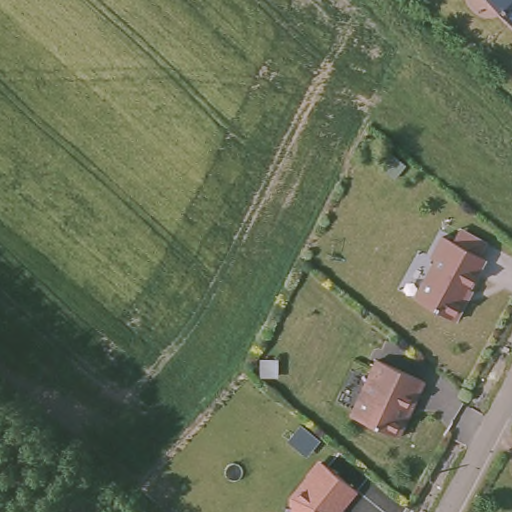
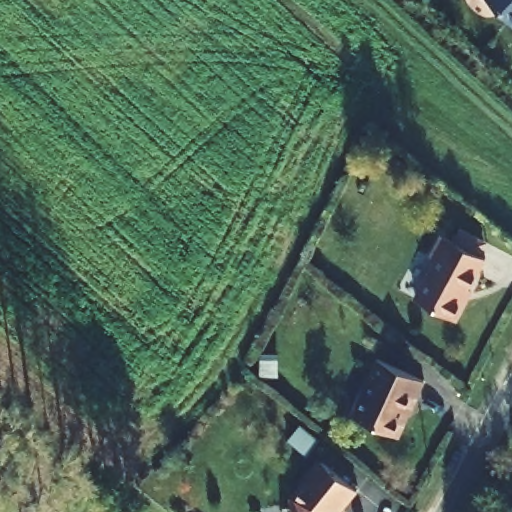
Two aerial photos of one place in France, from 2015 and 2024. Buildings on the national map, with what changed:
unchanged [(512,24),(487,0),(512,0),(512,24)]
unchanged [(464,302),(469,303),(458,323),(418,300),(439,262),(434,260),(447,237),(457,242),(464,228),(490,242),(482,257),(488,260),(464,302)]
unchanged [(353,413),(380,359),(425,384),(417,401),(411,398),(400,420),(406,423),(398,437),(353,413)]
unchanged [(289,497),(318,460),(357,493),(343,512),(284,512),(284,507),(290,507),(289,497)]

